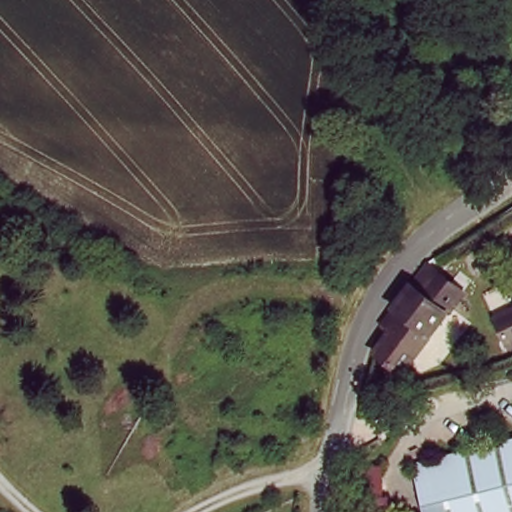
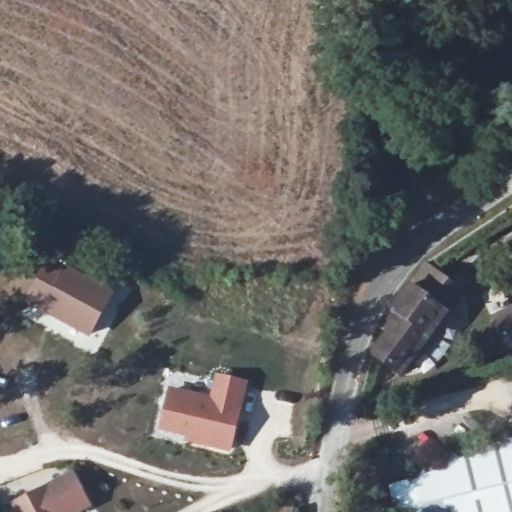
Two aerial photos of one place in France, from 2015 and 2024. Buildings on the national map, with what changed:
new [(23,302),(48,255),(67,265),(115,293),(90,338),(42,312),(23,302)]
unchanged [(423,262),(462,291),(398,373),(372,352),(387,332),(377,324),(423,262)]
unchanged [(500,285),(512,300),(512,330),(485,297),(500,285)]
new [(185,442),(185,437),(158,430),(169,388),(210,397),(216,374),(247,382),(230,452),(185,442)]
unchanged [(411,460),(512,436),(512,512),(423,512),(411,460)]
new [(5,506),(75,471),(93,507),(83,512),(8,512),(5,506)]

